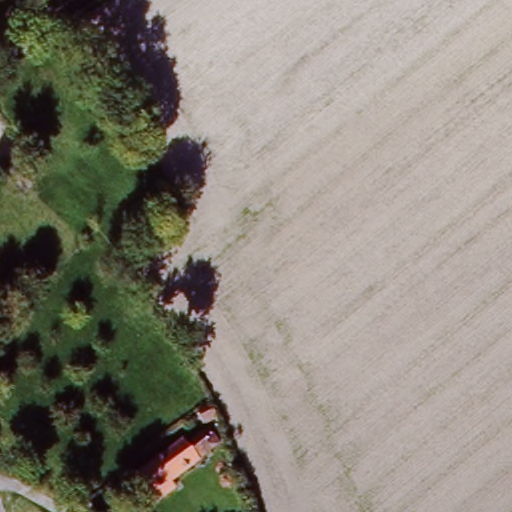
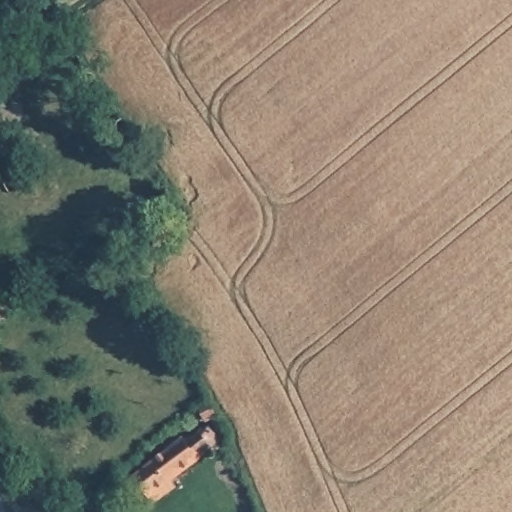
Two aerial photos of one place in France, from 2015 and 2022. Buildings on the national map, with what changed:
unchanged [(207,451),(182,469),(139,503),(127,487),(175,449),(195,435),(207,451)]

